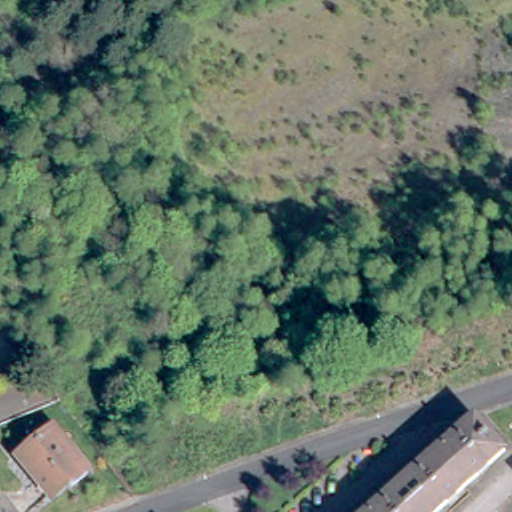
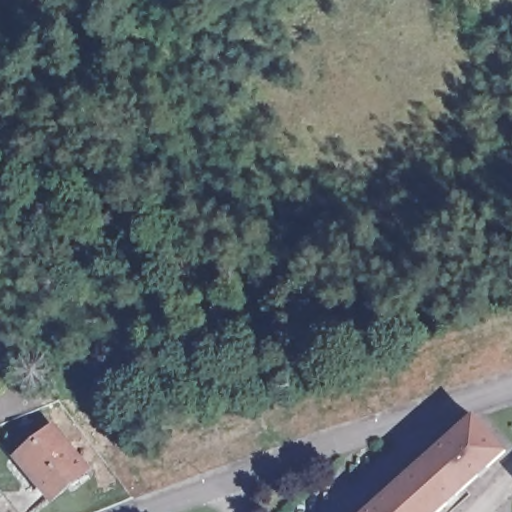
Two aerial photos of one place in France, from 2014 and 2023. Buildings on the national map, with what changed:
unchanged [(505,452),(437,512),(371,512),(475,420),(505,452)]
unchanged [(52,495),(20,456),(53,427),(85,465),(52,495)]

